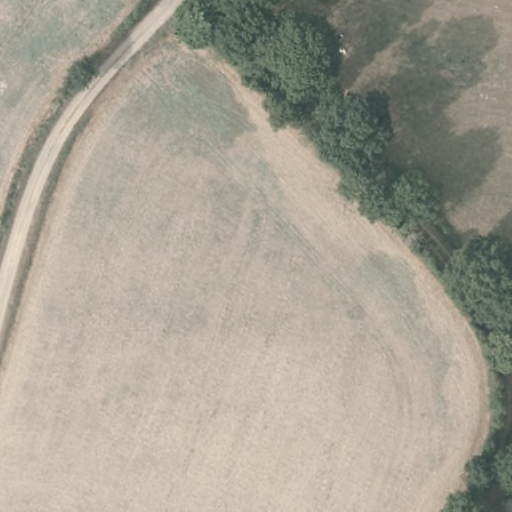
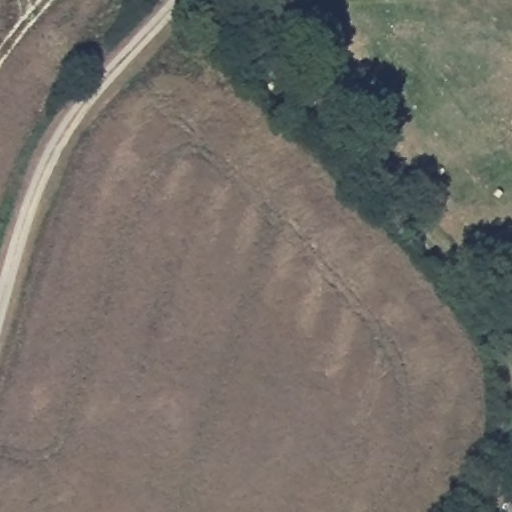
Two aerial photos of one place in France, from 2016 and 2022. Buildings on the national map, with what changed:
unchanged [(512,503),(512,512),(502,512),(506,502),(512,503)]

